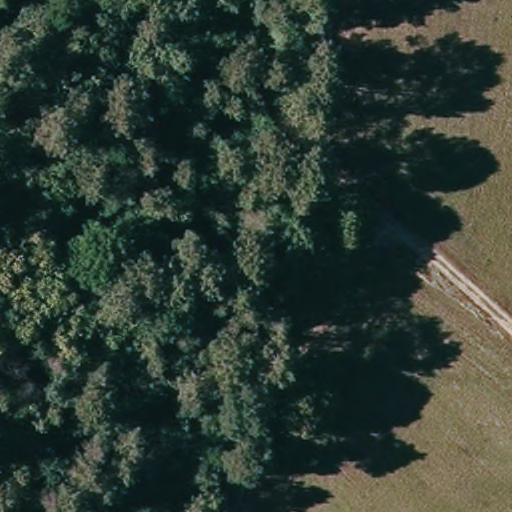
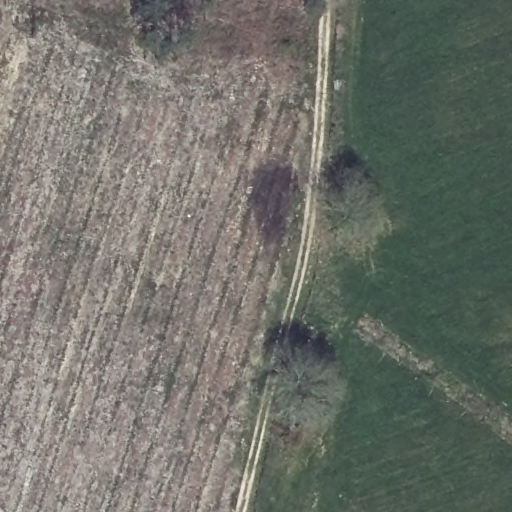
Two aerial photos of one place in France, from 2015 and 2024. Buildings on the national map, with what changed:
[]

